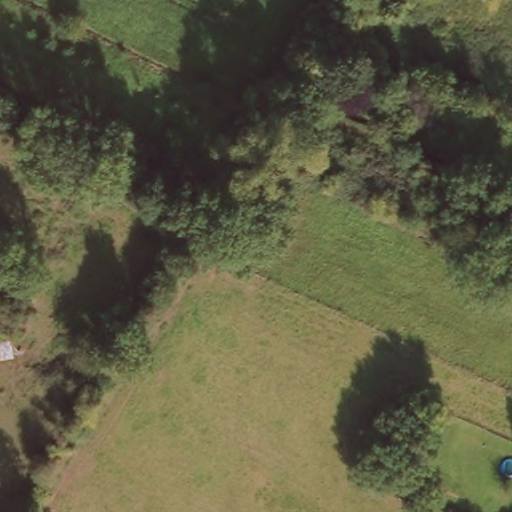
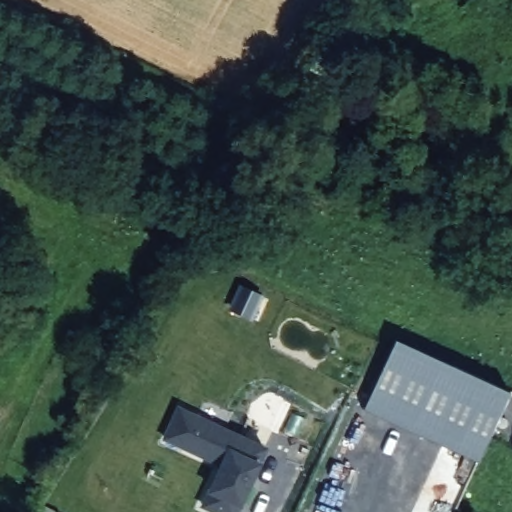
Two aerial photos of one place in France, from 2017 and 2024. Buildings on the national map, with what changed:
new [(510,392),(478,461),(364,409),(395,340),(510,392)]
new [(266,446),(237,512),(222,512),(204,504),(223,462),(161,435),(178,403),(266,446)]

